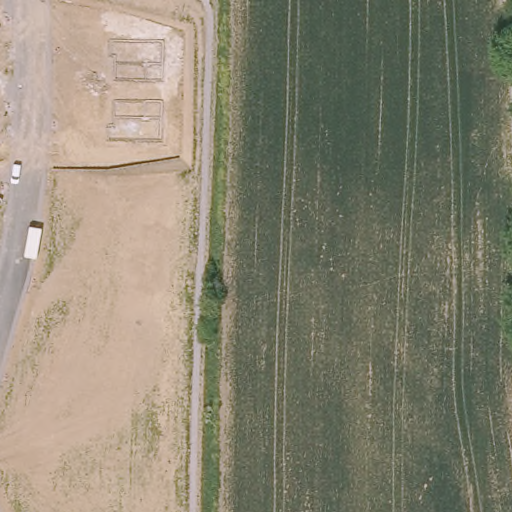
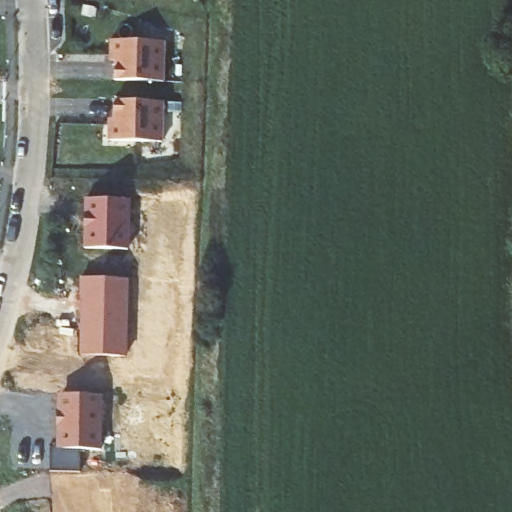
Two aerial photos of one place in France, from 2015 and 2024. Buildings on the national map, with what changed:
unchanged [(164,42),(165,82),(114,80),(115,55),(110,55),(109,40),(164,42)]
unchanged [(107,125),(115,125),(115,100),(162,102),(162,143),(107,141),(107,125)]
new [(85,198),(130,200),(129,248),(83,247),(85,198)]
new [(80,276),(129,278),(127,355),(79,354),(80,276)]
new [(80,471),(50,470),(50,447),(55,447),(57,393),(103,394),(102,449),(80,448),(80,471)]

